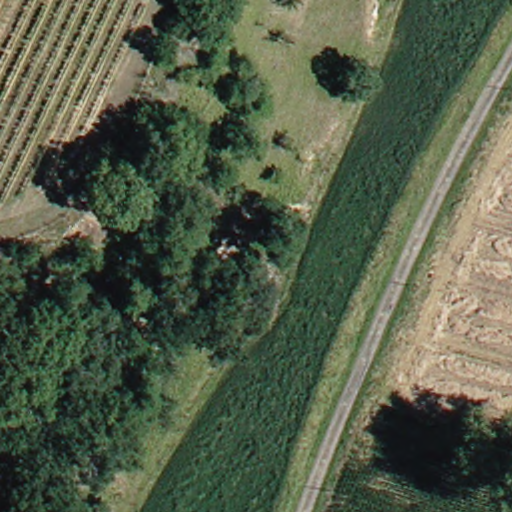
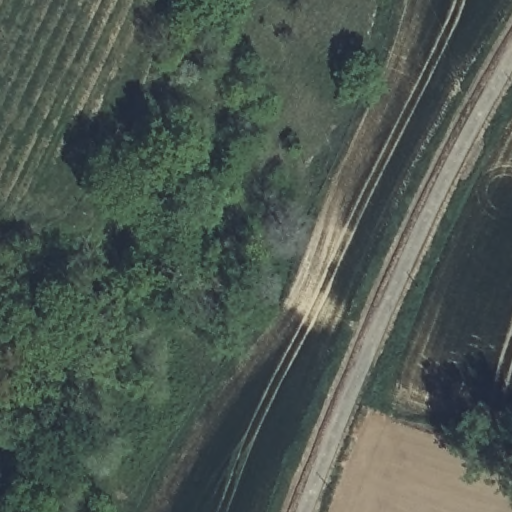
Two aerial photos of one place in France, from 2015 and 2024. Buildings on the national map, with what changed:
[]

